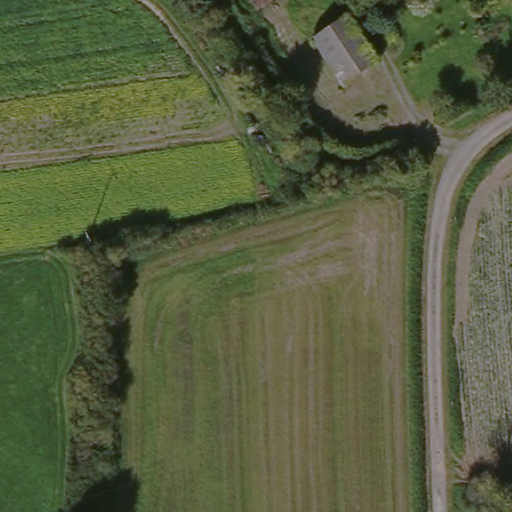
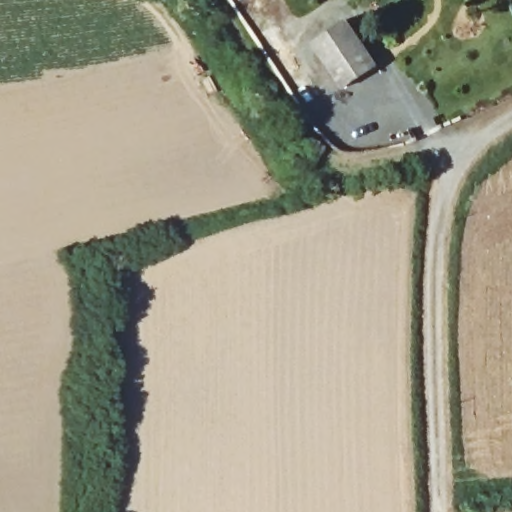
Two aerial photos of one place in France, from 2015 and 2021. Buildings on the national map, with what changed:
unchanged [(341,87),(311,44),(345,21),(375,65),(341,87)]

